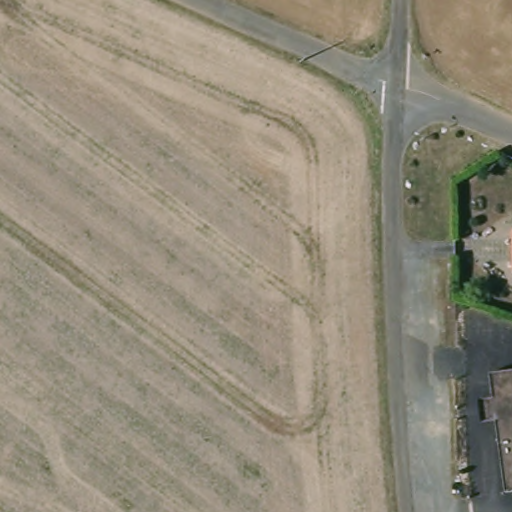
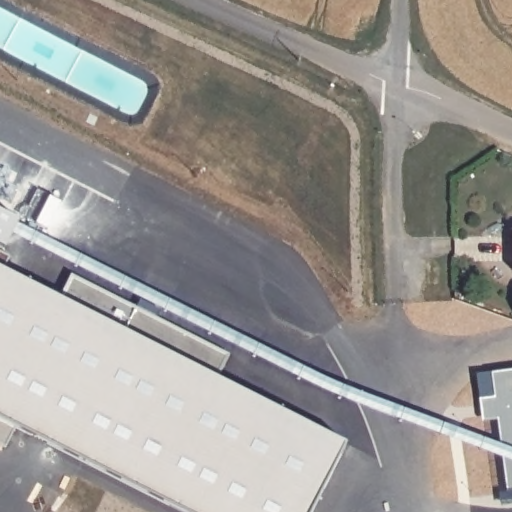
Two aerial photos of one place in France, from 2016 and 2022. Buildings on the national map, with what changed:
new [(352,446),(319,512),(194,512),(0,416),(0,271),(352,446)]
unchanged [(487,368),(512,366),(512,490),(503,491),(487,368)]

